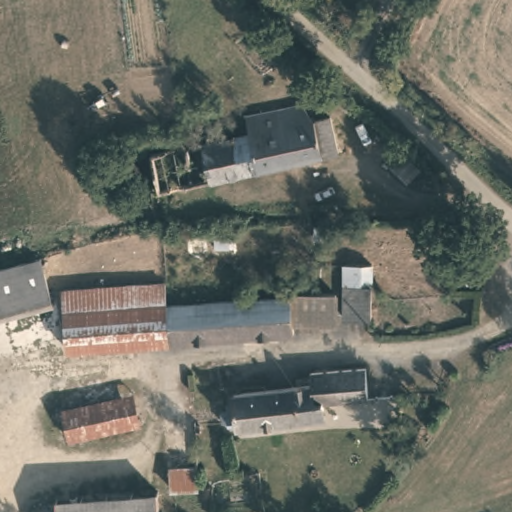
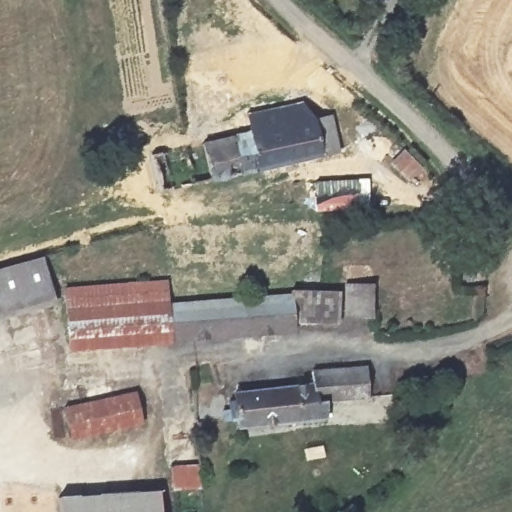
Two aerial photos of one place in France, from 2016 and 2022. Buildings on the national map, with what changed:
unchanged [(275,108),(298,103),(311,120),(326,117),(336,152),(286,164),(275,108)]
unchanged [(227,130),(244,127),(244,115),(275,108),(286,164),(240,174),(240,169),(231,137),(228,137),(227,130)]
unchanged [(228,137),(231,137),(240,169),(240,174),(209,181),(199,144),(228,137)]
unchanged [(404,150),(423,169),(409,181),(391,164),(404,150)]
unchanged [(0,320),(0,270),(42,258),(56,305),(0,320)]
unchanged [(346,317),(346,285),(346,264),(374,264),(373,285),(373,317),(346,317)]
unchanged [(169,301),(169,305),(172,342),(71,349),(67,289),(167,282),(169,301)]
unchanged [(169,305),(292,294),(292,292),(323,292),(338,292),(340,323),(296,322),(296,332),(172,342),(169,305)]
unchanged [(370,398),(326,402),(327,417),(240,427),(239,421),(224,422),(223,411),(231,410),(230,394),(313,386),(313,372),(368,368),(370,398)]
unchanged [(115,397),(136,393),(142,423),(72,440),(66,407),(85,403),(83,391),(112,383),(115,397)]
unchanged [(202,487),(172,487),(171,467),(200,466),(202,487)]
unchanged [(60,512),(59,498),(160,492),(161,512),(60,512)]

